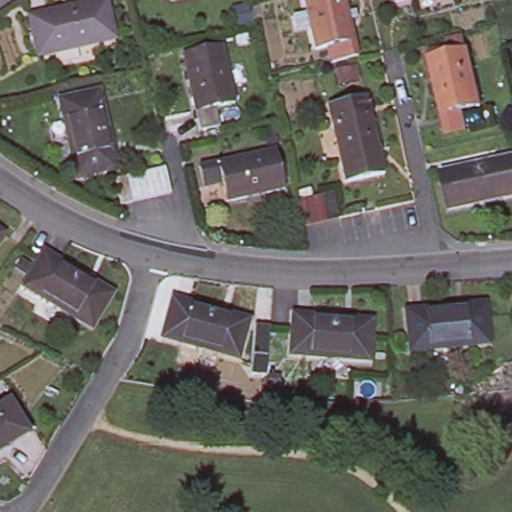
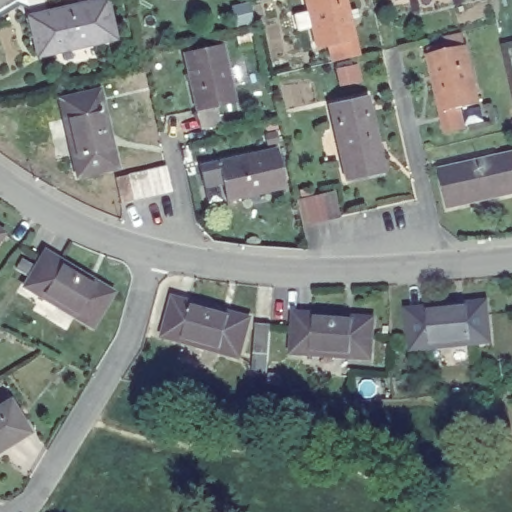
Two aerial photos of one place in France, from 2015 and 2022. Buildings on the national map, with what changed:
unchanged [(334,36),(317,41),(307,0),(348,0),(355,31),(359,49),(337,54),(334,36)]
unchanged [(108,1),(116,39),(40,55),(32,18),(108,1)]
unchanged [(222,37),(235,93),(216,98),(221,117),(202,121),(185,45),(222,37)]
unchanged [(447,129),(430,53),(467,44),(480,101),(460,105),(465,125),(447,129)]
unchanged [(101,91),(117,168),(80,176),(63,100),(101,91)]
unchanged [(367,98),(384,176),(346,184),(330,106),(367,98)]
unchanged [(292,184),(233,198),(229,179),(210,183),(205,164),(282,145),(292,184)]
unchanged [(512,150),(512,192),(450,207),(440,167),(512,150)]
unchanged [(142,165),(155,162),(167,159),(172,184),(160,188),(147,190),(135,194),(130,168),(142,165)]
unchanged [(311,201),(325,199),(337,197),(342,221),(332,224),(317,227),(304,230),(297,203),(311,201)]
unchanged [(0,239),(0,227),(6,231),(0,239)]
unchanged [(114,293),(92,326),(27,284),(48,251),(114,293)]
unchanged [(237,351),(163,327),(175,289),(250,314),(237,351)]
unchanged [(490,299),(502,297),(512,296),(512,322),(507,323),(495,325),(490,299)]
unchanged [(485,339),(407,349),(402,308),(480,299),(485,339)]
unchanged [(287,336),(275,334),(262,333),(265,307),(277,309),(290,310),(287,336)]
unchanged [(377,353),(299,350),(300,310),(378,313),(377,353)]
unchanged [(0,452),(0,407),(0,408),(14,399),(34,430),(0,452)]

